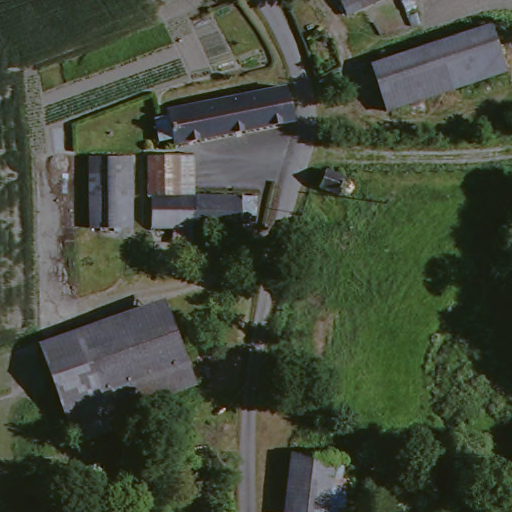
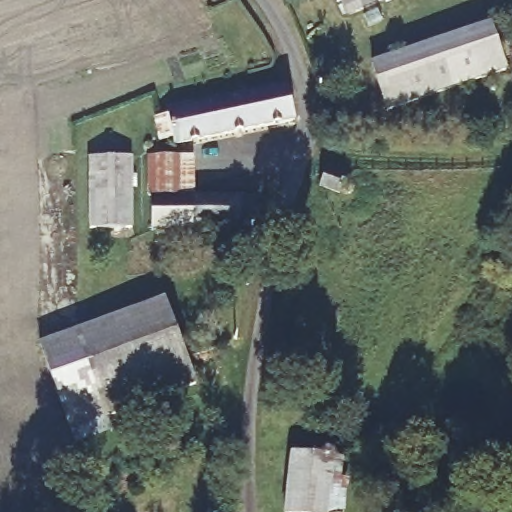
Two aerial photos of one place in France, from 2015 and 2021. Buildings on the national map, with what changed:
unchanged [(343,0),(385,0),(351,16),(343,0)]
unchanged [(369,66),(486,25),(501,70),(383,111),(369,66)]
unchanged [(280,84),(289,120),(169,144),(162,109),(280,84)]
unchanged [(130,156),(130,229),(87,229),(87,155),(130,156)]
unchanged [(192,159),(191,200),(148,200),(147,159),(192,159)]
unchanged [(344,174),(344,183),(348,183),(350,185),(352,187),(352,189),(352,190),(351,193),(350,194),(339,192),(339,194),(326,193),(326,190),(321,189),(323,172),(344,174)]
unchanged [(311,198),(325,200),(323,216),(309,214),(311,198)]
unchanged [(191,200),(253,200),(253,228),(236,228),(236,233),(148,233),(148,200),(191,200)]
unchanged [(195,387),(103,419),(109,434),(80,444),(39,344),(162,300),(195,387)]
unchanged [(336,456),(333,512),(290,512),(293,453),(336,456)]

